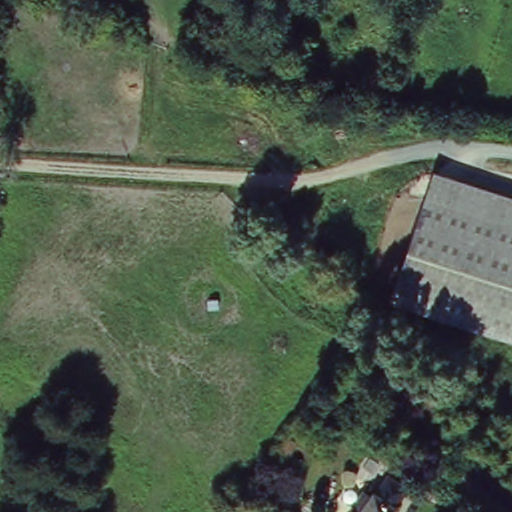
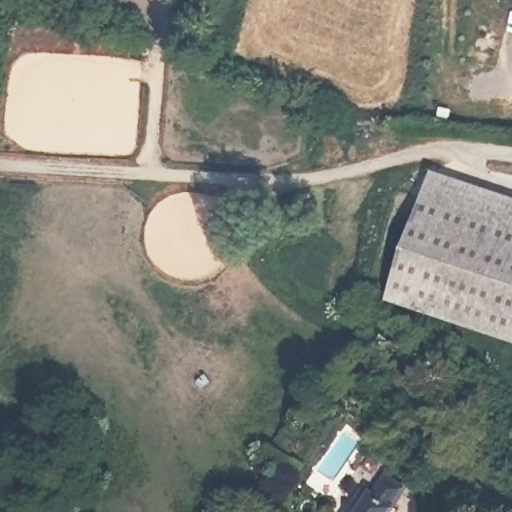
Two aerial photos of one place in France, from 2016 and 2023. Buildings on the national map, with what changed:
unchanged [(432,170),(512,197),(512,341),(387,300),(432,170)]
unchanged [(363,489),(369,496),(376,485),(400,498),(391,512),(351,512),(363,489)]

